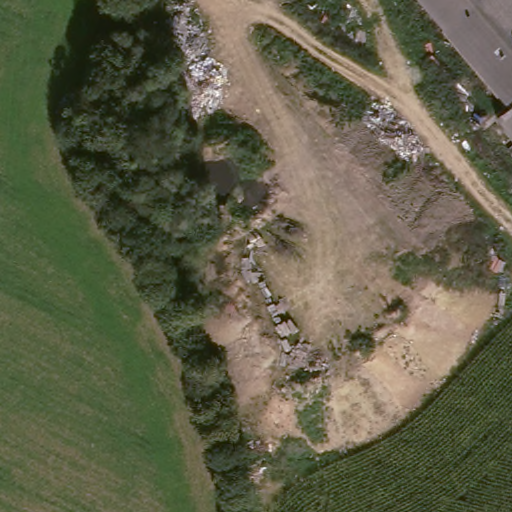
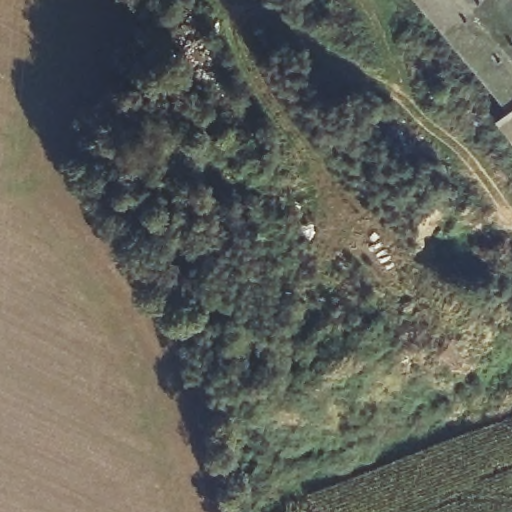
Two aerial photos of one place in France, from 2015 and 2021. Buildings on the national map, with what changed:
unchanged [(496,122),(507,113),(490,91),(446,36),(417,0),(512,0),(512,141),(496,122)]

